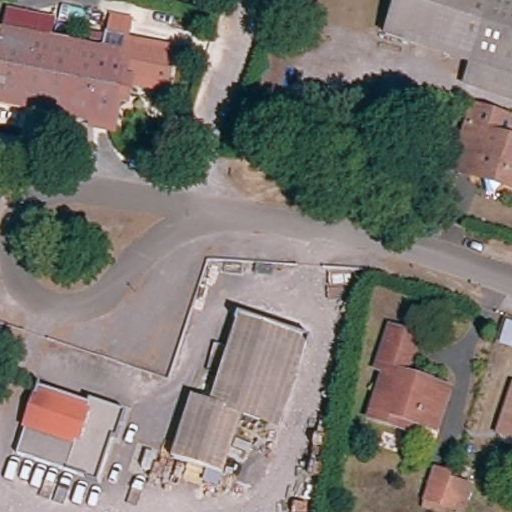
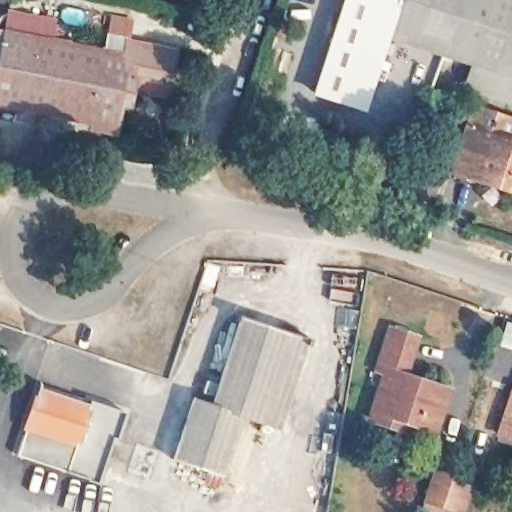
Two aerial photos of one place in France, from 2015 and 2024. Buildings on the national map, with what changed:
new [(363,112),(309,95),(341,0),(403,0),(386,45),(363,112)]
unchanged [(451,65),(386,45),(403,0),(472,0),(451,65)]
unchanged [(472,71),(451,65),(472,0),(512,0),(512,84),(472,71)]
unchanged [(10,17),(48,28),(55,30),(50,45),(103,60),(108,45),(113,27),(118,15),(125,17),(139,20),(135,34),(129,51),(128,57),(173,70),(164,97),(144,91),(135,122),(120,118),(113,141),(0,108),(0,31),(5,33),(10,17)]
unchanged [(467,94),(472,71),(512,84),(512,108),(467,94)]
unchanged [(457,174),(473,112),(512,124),(507,142),(512,143),(512,192),(503,189),(472,179),(457,174)]
unchanged [(242,421),(222,476),(168,460),(186,402),(205,408),(235,322),(293,340),(263,428),(242,421)]
unchanged [(395,432),(369,424),(388,372),(377,368),(392,330),(422,339),(408,378),(449,390),(437,428),(416,423),(412,437),(395,432)]
unchanged [(293,340),(310,345),(279,434),(263,428),(293,340)]
unchanged [(117,437),(112,435),(97,480),(102,482),(101,483),(86,478),(86,477),(15,453),(36,394),(34,393),(39,382),(40,382),(39,387),(89,403),(90,398),(91,399),(89,403),(100,407),(101,402),(126,410),(117,437)]
unchanged [(506,437),(512,418),(512,440),(506,437)]
unchanged [(421,512),(432,479),(452,485),(449,490),(471,498),(466,512),(421,512)]

